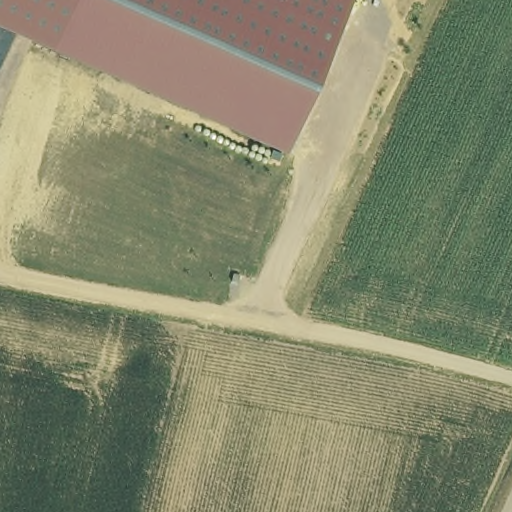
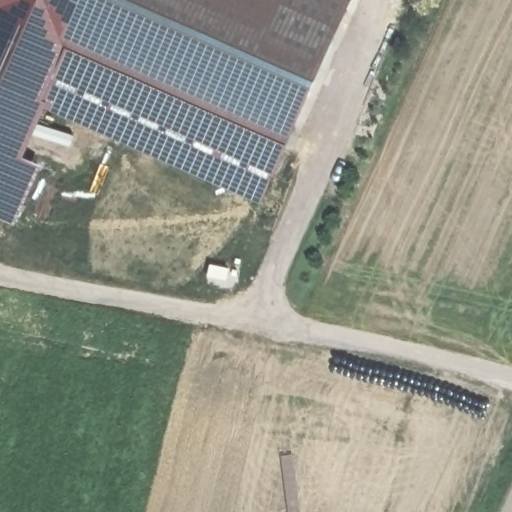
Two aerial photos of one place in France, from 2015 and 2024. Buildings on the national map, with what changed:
unchanged [(285,149),(62,51),(0,23),(0,0),(353,0),(285,149)]
new [(40,110),(20,156),(40,166),(15,226),(0,219),(0,23),(62,51),(40,110)]
new [(285,149),(260,205),(40,110),(62,51),(285,149)]

